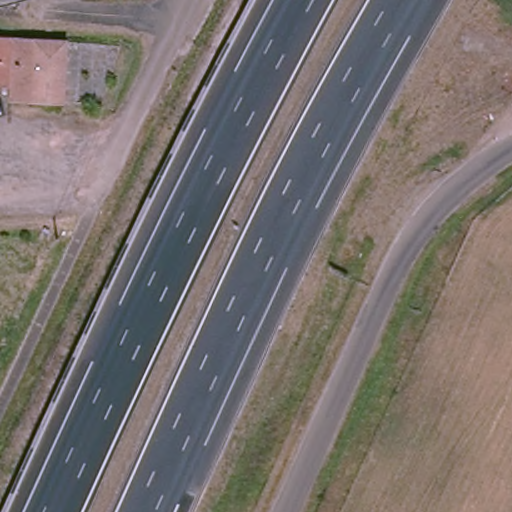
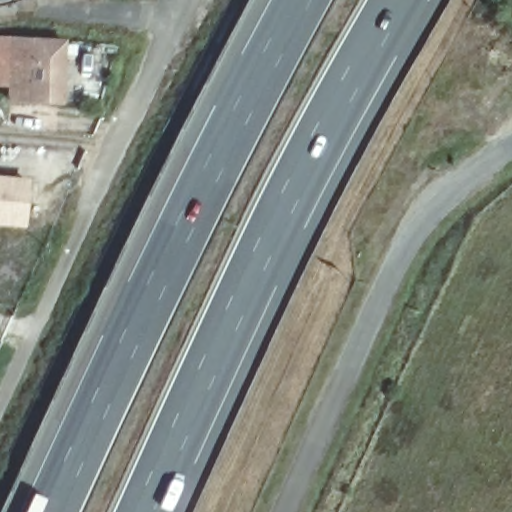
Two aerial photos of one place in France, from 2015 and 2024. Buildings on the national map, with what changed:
unchanged [(19,96),(20,69),(0,67),(0,34),(24,35),(71,37),(67,98),(19,96)]
new [(0,176),(29,179),(26,227),(0,225),(0,176)]
demolished [(473,202),(465,202),(460,192),(471,186),(475,197),(473,202)]

